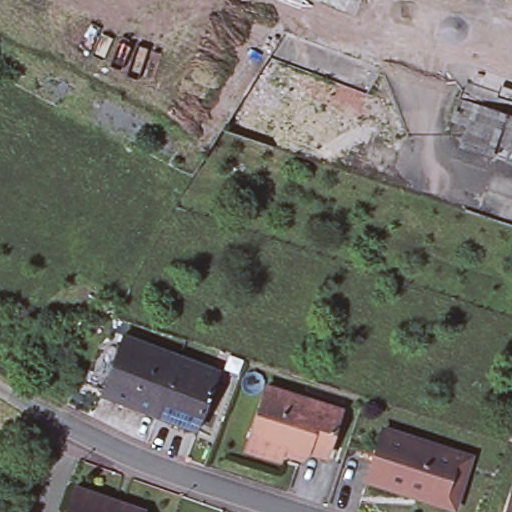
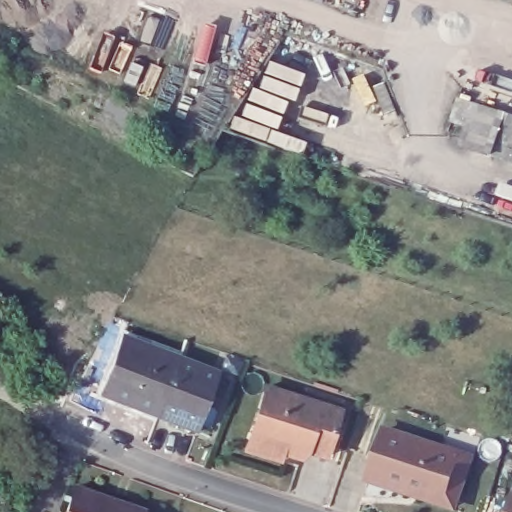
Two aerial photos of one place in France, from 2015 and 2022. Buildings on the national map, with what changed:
unchanged [(487,167),(455,156),(465,126),(450,120),(458,98),(505,113),(490,155),(487,167)]
unchanged [(512,115),(512,162),(490,155),(505,113),(512,115)]
unchanged [(179,357),(218,372),(195,431),(157,416),(100,395),(122,335),(179,357)]
unchanged [(272,386),(345,410),(330,456),(312,450),(304,458),(286,452),(284,459),(251,448),(257,432),(272,386)]
unchanged [(405,491),(367,479),(384,429),(456,453),(469,456),(458,490),(453,506),(405,491)]
unchanged [(75,487),(110,499),(144,511),(143,512),(66,512),(75,487)]
unchanged [(512,492),(512,512),(502,512),(509,492),(512,492)]

